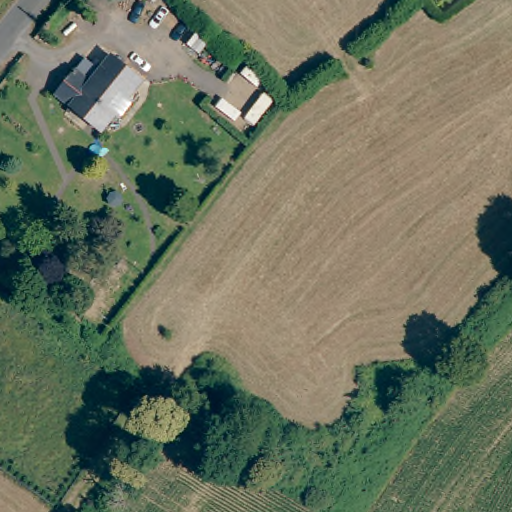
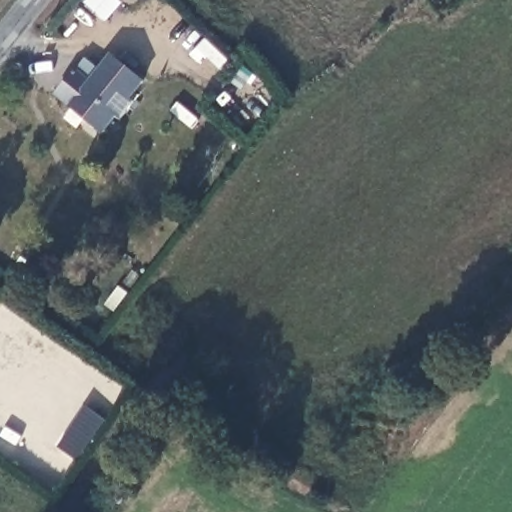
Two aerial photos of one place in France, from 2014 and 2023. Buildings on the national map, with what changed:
unchanged [(116,116),(111,114),(94,136),(60,112),(67,102),(52,92),(72,67),(74,69),(82,57),(95,68),(106,54),(138,79),(125,96),(129,100),(116,116)]
new [(109,421),(80,462),(57,449),(87,407),(109,421)]

